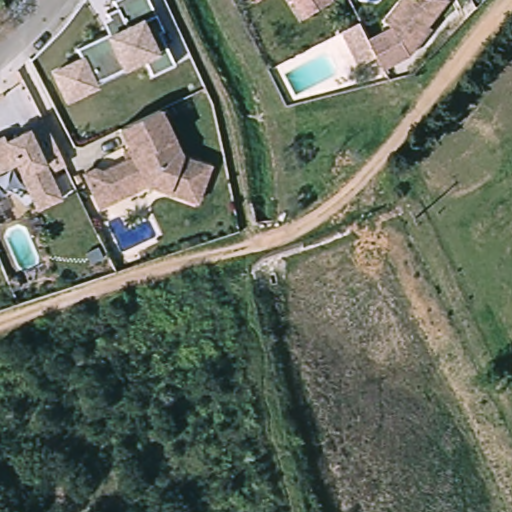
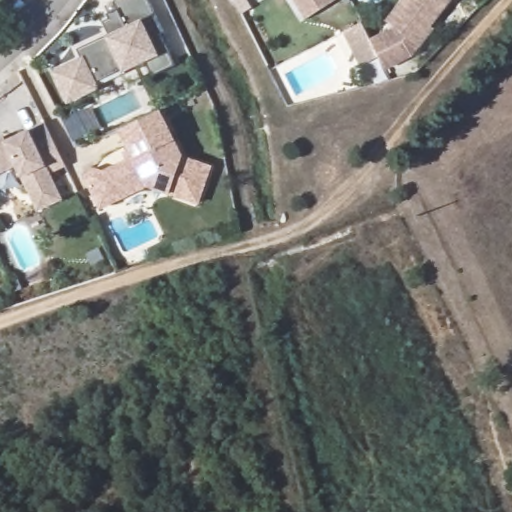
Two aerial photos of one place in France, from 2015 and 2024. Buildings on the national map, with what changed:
unchanged [(95,89),(68,102),(55,74),(82,61),(76,51),(115,33),(107,15),(118,10),(113,2),(118,0),(148,0),(163,33),(160,35),(175,67),(151,77),(144,61),(125,70),(93,84),(95,89)]
unchanged [(301,11),(294,0),(320,0),(301,11)]
unchanged [(455,3),(436,30),(439,32),(426,51),(394,28),(411,0),(461,0),(455,3)]
unchanged [(375,50),(357,58),(340,25),(359,16),(375,50)]
unchanged [(86,174),(98,169),(105,173),(130,161),(125,154),(133,151),(123,130),(162,111),(185,159),(213,166),(203,204),(151,188),(118,202),(103,209),(86,174)]
unchanged [(66,203),(41,214),(20,169),(0,179),(0,144),(8,140),(10,146),(50,128),(70,170),(53,177),(66,203)]

